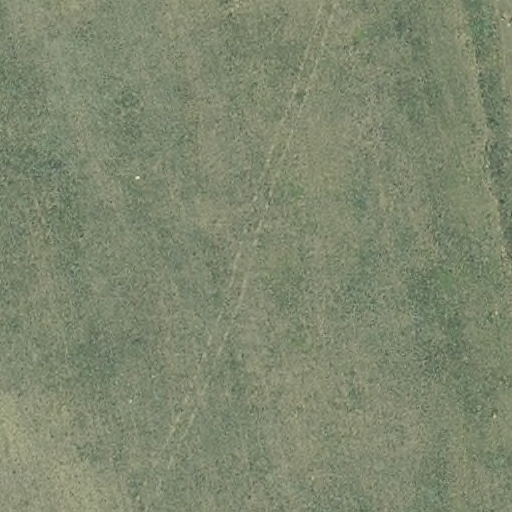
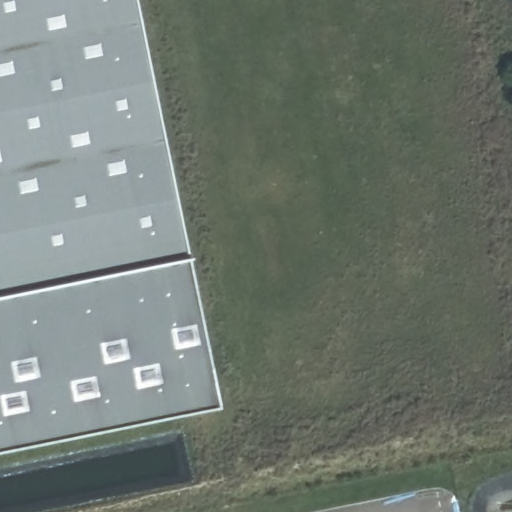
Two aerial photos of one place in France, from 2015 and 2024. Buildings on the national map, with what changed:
new [(216,405),(0,450),(0,0),(134,0),(216,405)]

